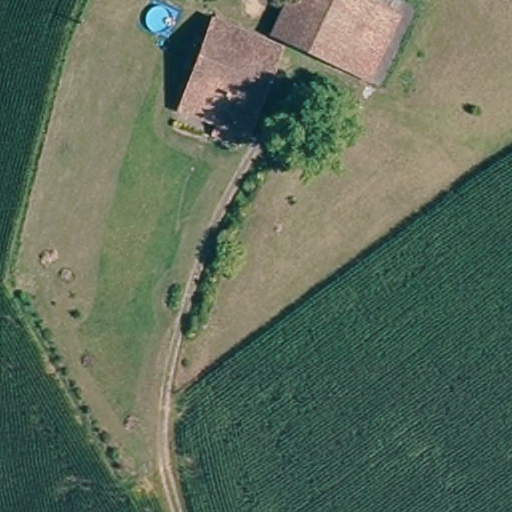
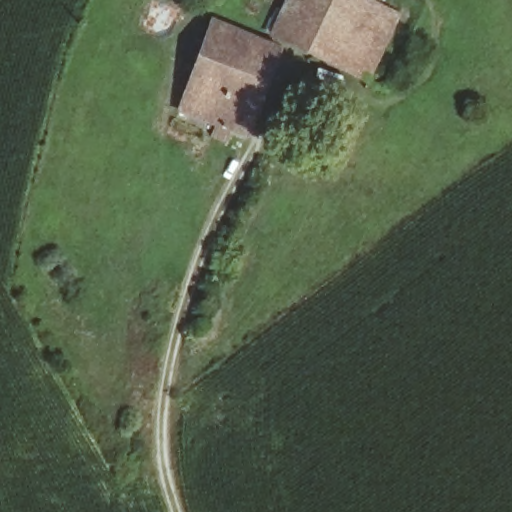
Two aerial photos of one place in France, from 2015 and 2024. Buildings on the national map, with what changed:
unchanged [(377,3),(386,6),(363,71),(267,39),(280,0),(378,0),(377,3)]
unchanged [(203,30),(264,48),(275,51),(248,141),(230,136),(227,149),(211,145),(217,131),(176,119),(203,30)]

